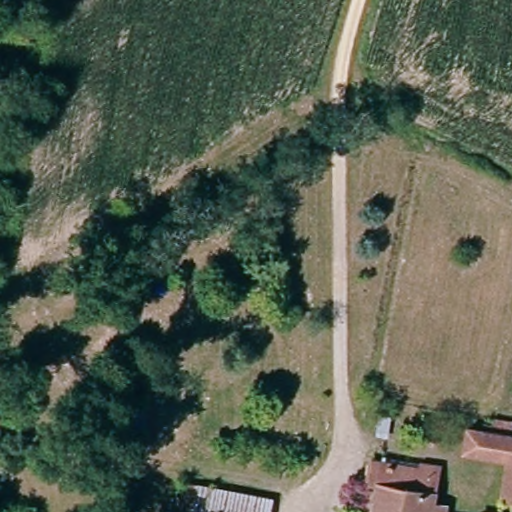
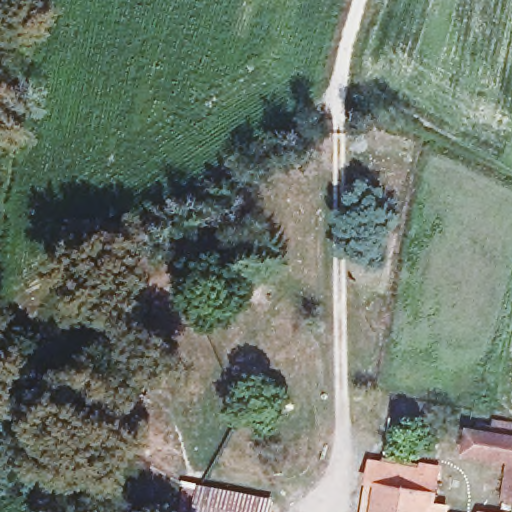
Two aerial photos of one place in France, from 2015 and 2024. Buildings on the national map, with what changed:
unchanged [(508,459),(464,450),(470,428),(482,430),(493,432),(496,420),(512,423),(512,432),(511,434),(512,435),(512,498),(502,496),(508,459)]
unchanged [(389,471),(381,512),(363,512),(373,468),(389,471)]
unchanged [(443,473),(441,482),(436,506),(453,509),(453,512),(381,512),(389,471),(429,480),(430,470),(443,473)]
unchanged [(272,501),(270,512),(196,512),(202,488),(272,501)]

